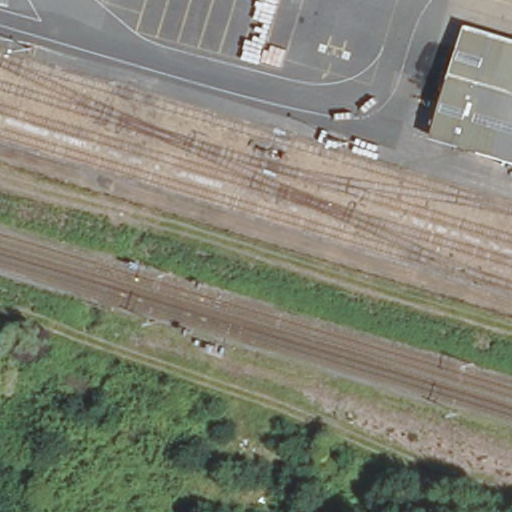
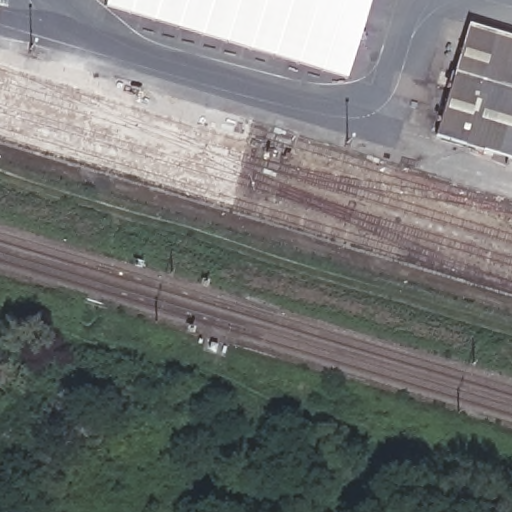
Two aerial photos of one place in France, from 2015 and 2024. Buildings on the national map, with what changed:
new [(112,11),(115,0),(374,0),(352,80),(112,11)]
unchanged [(467,22),(512,36),(512,155),(434,131),(467,22)]

